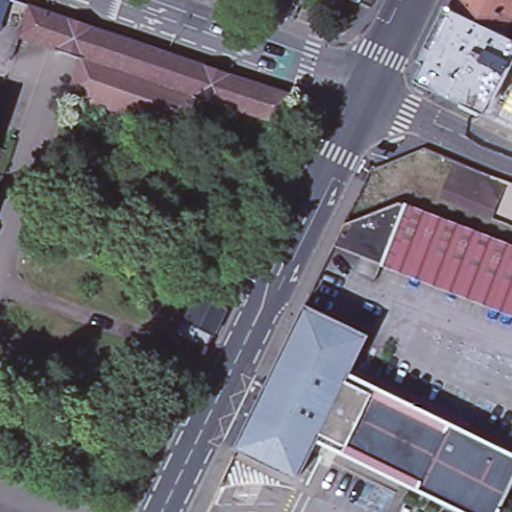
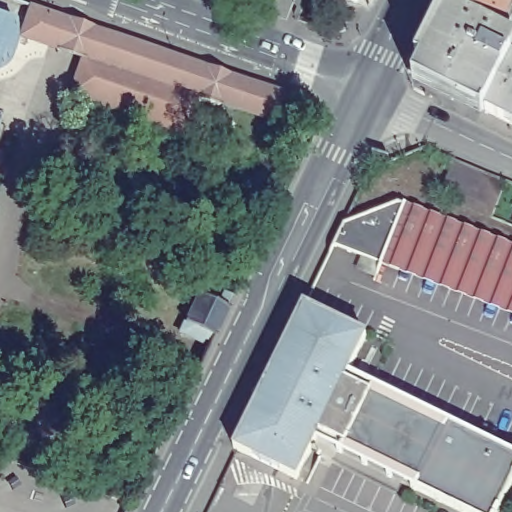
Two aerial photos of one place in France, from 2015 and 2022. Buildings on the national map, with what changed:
unchanged [(13,38),(0,34),(0,0),(10,0),(24,5),(13,38)]
unchanged [(343,0),(364,0),(360,8),(343,0)]
unchanged [(456,12),(461,0),(512,0),(512,26),(507,37),(456,12)]
unchanged [(282,115),(271,119),(194,97),(181,133),(70,94),(83,60),(58,52),(58,50),(20,37),(30,7),(289,94),(282,115)]
unchanged [(424,67),(418,64),(444,8),(456,12),(507,37),(512,41),(512,69),(483,117),(415,84),(424,67)]
unchanged [(512,69),(512,130),(483,117),(512,69)]
unchanged [(486,217),(435,196),(450,159),(501,180),(486,217)]
unchanged [(512,243),(512,282),(394,236),(384,261),(334,241),(344,221),(399,199),(512,243)]
unchanged [(384,261),(394,236),(512,282),(512,312),(384,262),(384,261)]
unchanged [(219,309),(224,298),(232,302),(227,313),(213,342),(185,328),(199,299),(219,309)]
unchanged [(346,383),(447,433),(450,426),(512,456),(512,488),(500,512),(458,512),(418,492),(421,485),(321,436),(298,480),(238,450),(306,309),(368,339),(346,383)]

